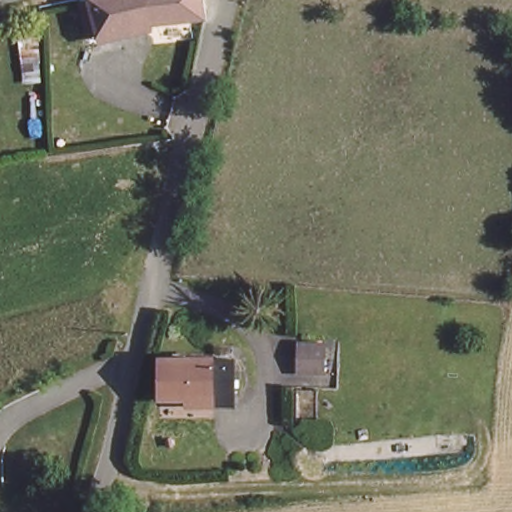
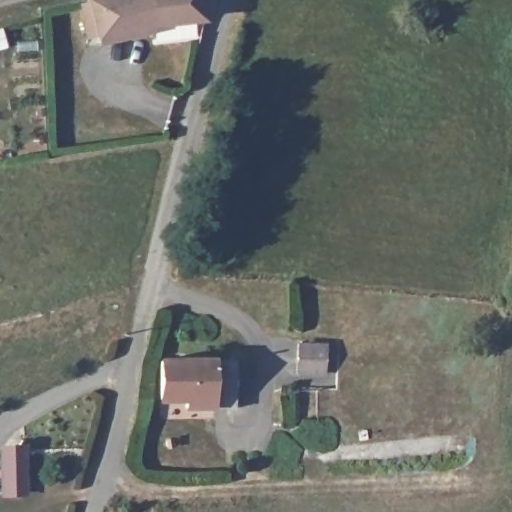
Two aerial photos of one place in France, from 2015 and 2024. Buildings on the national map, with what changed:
unchanged [(75,5),(91,2),(90,0),(202,0),(205,14),(95,38),(81,40),(75,5)]
unchanged [(300,371),(298,341),(325,343),(325,371),(300,371)]
unchanged [(233,403),(207,402),(207,391),(162,389),(162,358),(230,359),(233,403)]
new [(28,495),(0,496),(0,444),(26,443),(28,495)]

